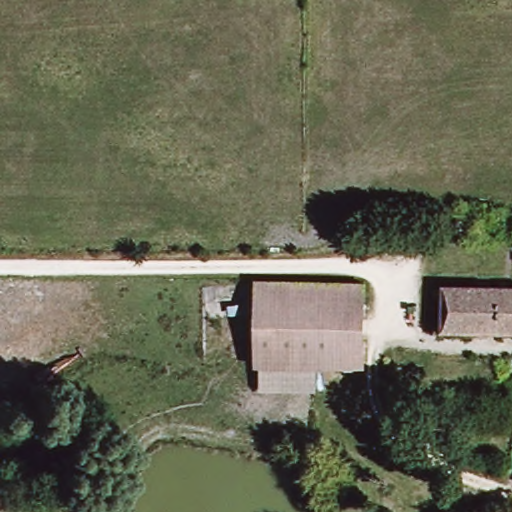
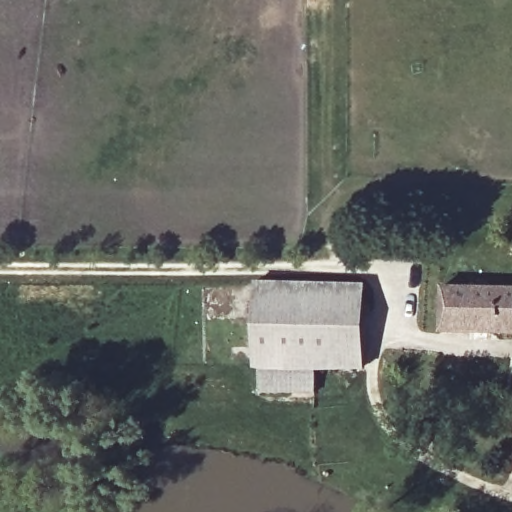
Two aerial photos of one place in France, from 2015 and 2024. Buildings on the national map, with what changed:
unchanged [(314,368),(257,367),(253,368),(251,285),(336,286),(336,368),(314,368)]
unchanged [(359,286),(360,369),(336,368),(336,286),(359,286)]
unchanged [(512,290),(512,335),(437,335),(437,290),(512,290)]
unchanged [(314,394),(257,394),(257,367),(314,368),(314,394)]

